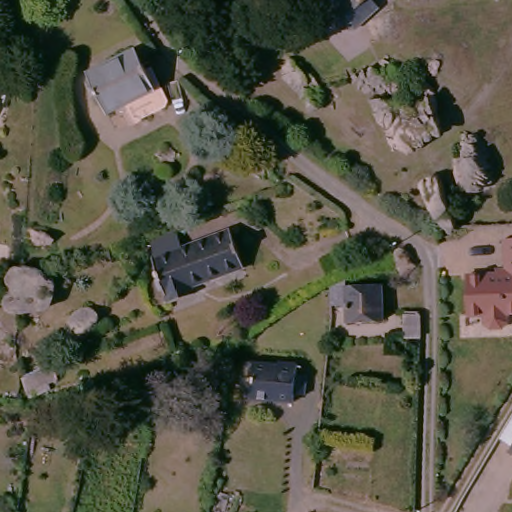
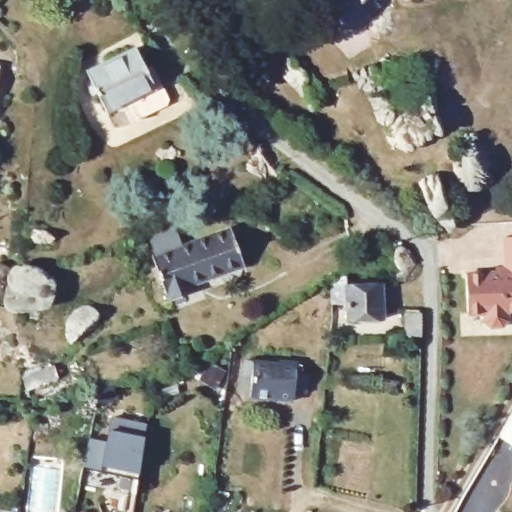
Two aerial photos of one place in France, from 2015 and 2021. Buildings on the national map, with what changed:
unchanged [(356,20),(347,30),(335,29),(328,19),(330,8),(323,0),(338,0),(356,20)]
unchanged [(372,6),(358,18),(342,0),(367,0),(372,6)]
unchanged [(159,90),(166,86),(173,100),(169,106),(131,126),(123,110),(107,116),(87,76),(140,49),(159,90)]
unchanged [(0,83),(0,75),(2,75),(0,83)]
unchanged [(245,276),(191,296),(194,301),(169,312),(152,265),(154,263),(149,247),(175,239),(180,255),(232,238),(245,276)]
unchanged [(512,244),(512,320),(510,320),(510,328),(504,335),(492,335),(486,329),(486,320),(469,321),(467,280),(508,278),(506,244),(512,244)]
unchanged [(385,324),(350,326),(350,310),(345,309),(345,315),(333,316),(332,282),(349,282),(349,291),(384,292),(385,324)]
unchanged [(416,337),(402,336),(401,315),(415,315),(416,337)]
unchanged [(254,386),(247,385),(249,367),(299,372),(298,382),(309,383),(307,403),(297,402),(295,410),(252,406),(254,386)]
unchanged [(115,383),(109,403),(96,401),(99,387),(115,383)]
new [(139,478),(130,476),(82,466),(88,438),(106,442),(112,417),(139,422),(147,424),(139,478)]

